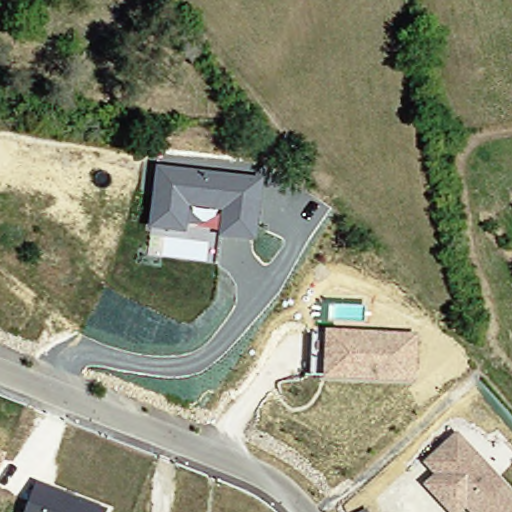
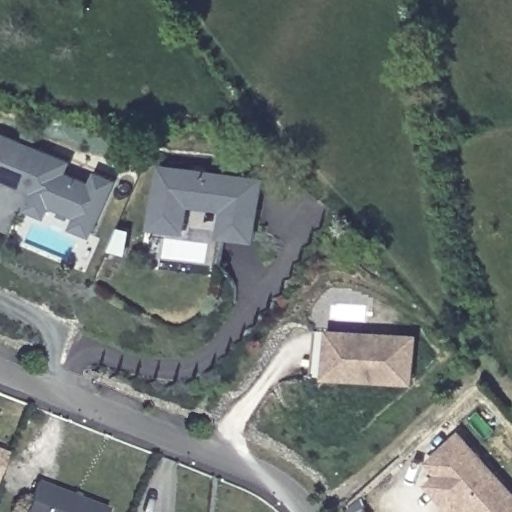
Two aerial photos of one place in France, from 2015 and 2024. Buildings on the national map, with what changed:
new [(66,175),(89,183),(94,172),(117,181),(95,237),(72,229),(76,216),(53,209),(49,219),(26,210),(32,194),(0,181),(0,135),(70,162),(66,175)]
unchanged [(257,241),(217,237),(220,210),(191,206),(187,234),(149,230),(156,165),(263,177),(257,241)]
unchanged [(418,335),(417,382),(311,376),(313,331),(418,335)]
unchanged [(428,463),(453,439),(457,435),(468,447),(482,461),(492,471),(512,492),(512,512),(475,512),(467,505),(460,512),(454,512),(428,485),(440,475),(428,463)]
unchanged [(0,453),(9,456),(0,479),(0,453)]
unchanged [(107,510),(106,512),(25,512),(36,483),(107,510)]

